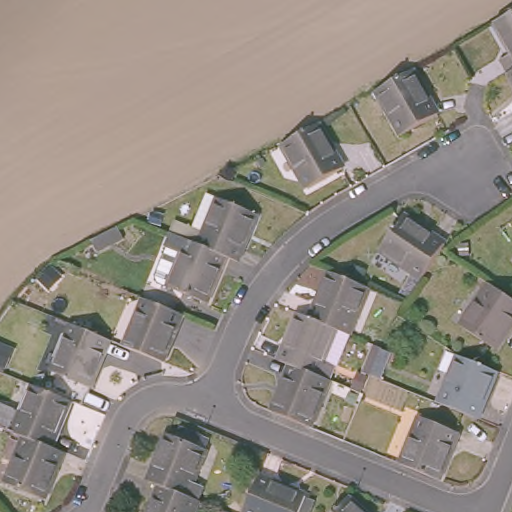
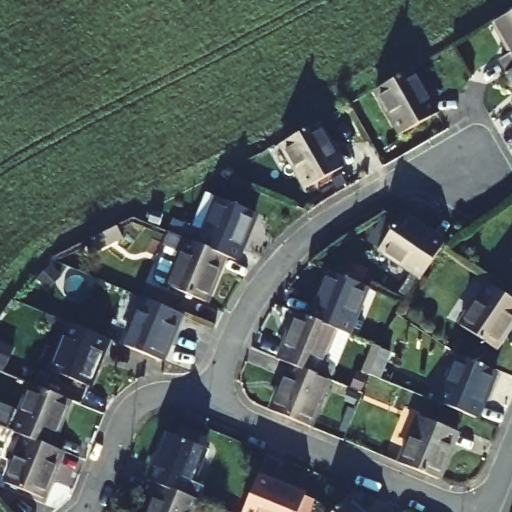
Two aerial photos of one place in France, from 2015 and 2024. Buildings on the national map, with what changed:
unchanged [(494,61),(507,53),(491,24),(512,12),(512,69),(503,74),(494,61)]
unchanged [(503,74),(512,69),(512,90),(503,74)]
unchanged [(434,114),(398,133),(374,91),(402,76),(409,71),(434,114)]
unchanged [(509,112),(512,110),(512,117),(509,112)]
unchanged [(343,167),(307,187),(282,143),(314,127),(319,124),(343,167)]
unchanged [(198,242),(216,195),(253,210),(235,257),(223,252),(198,242)]
unchanged [(444,244),(439,251),(422,277),(380,250),(403,216),(444,244)]
unchanged [(205,298),(168,282),(157,278),(154,272),(166,243),(171,231),(186,237),(198,242),(223,252),(205,298)]
unchanged [(299,315),(319,267),(356,282),(336,330),(325,325),(299,315)]
unchanged [(512,300),(512,321),(493,348),(460,326),(489,284),(512,300)]
unchanged [(181,317),(161,363),(129,351),(124,349),(144,302),(181,317)]
unchanged [(306,372),(280,361),(268,356),(287,310),(299,315),(325,325),(306,372)]
unchanged [(44,367),(63,321),(98,335),(79,382),(69,378),(44,367)]
unchanged [(494,371),(475,417),(439,402),(457,355),(494,371)]
unchanged [(306,372),(316,376),(298,421),(261,407),(280,361),(306,372)]
unchanged [(0,429),(0,407),(20,416),(32,387),(44,392),(69,403),(50,450),(26,440),(0,429)]
unchanged [(455,432),(438,480),(399,463),(419,417),(455,432)]
unchanged [(151,491),(138,486),(156,439),(163,442),(168,432),(191,441),(188,451),(194,453),(181,485),(194,490),(188,506),(151,491)]
unchanged [(60,454),(42,501),(8,486),(26,440),(50,450),(60,454)]
unchanged [(297,512),(243,512),(259,475),(305,493),(297,512)]
unchanged [(142,512),(151,491),(188,506),(185,512),(142,512)]
unchanged [(369,512),(338,512),(351,497),(369,512)]

